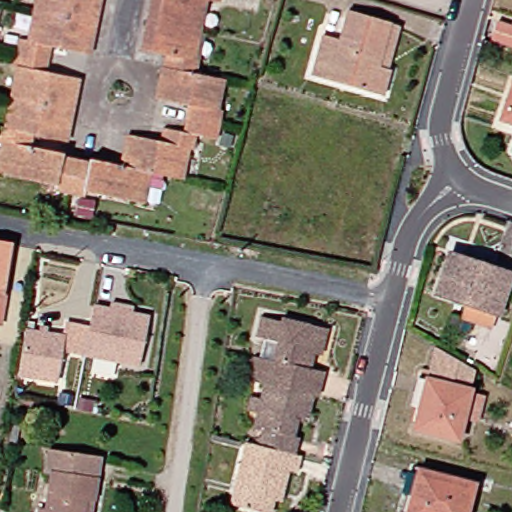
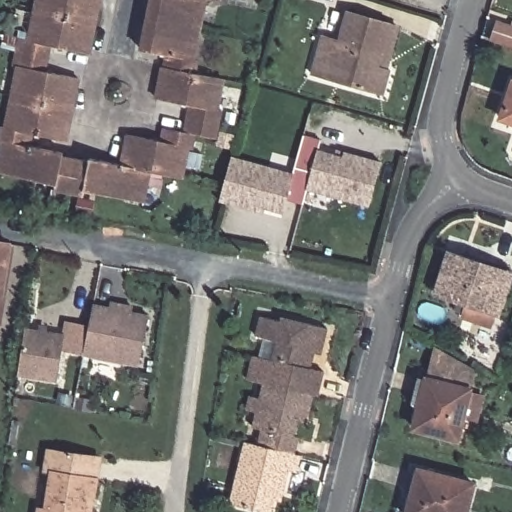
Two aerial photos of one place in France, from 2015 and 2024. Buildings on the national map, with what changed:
unchanged [(97,27),(90,57),(89,58),(52,50),(46,75),(77,83),(71,114),(64,143),(34,138),(31,149),(61,156),(61,158),(87,165),(88,162),(120,168),(127,138),(148,143),(159,145),(162,133),(193,139),(191,151),(186,150),(179,181),(147,175),(140,204),(82,192),(80,197),(67,194),(53,192),(54,186),(0,175),(0,150),(2,143),(0,143),(0,129),(5,130),(12,101),(20,69),(12,68),(19,42),(29,44),(39,0),(102,0),(97,27)]
unchanged [(226,4),(213,2),(199,63),(205,65),(203,78),(228,83),(222,114),(227,115),(225,128),(192,120),(196,108),(162,100),(170,70),(172,57),(149,52),(156,23),(160,0),(227,0),(226,4)]
unchanged [(317,74),(328,35),(346,40),(354,10),(397,23),(407,26),(394,69),(398,70),(390,95),(353,85),(336,80),(317,74)]
unchanged [(498,88),(480,83),(482,73),(501,79),(498,88)]
unchanged [(512,95),(512,121),(503,118),(512,95)]
new [(293,172),(303,137),(320,140),(318,145),(379,162),(368,204),(307,188),(303,203),(287,198),(282,215),(222,199),(231,158),(293,172)]
unchanged [(3,298),(0,318),(0,244),(14,247),(6,298),(3,298)]
unchanged [(438,296),(452,258),(465,262),(466,257),(512,271),(512,280),(501,315),(438,296)]
unchanged [(40,284),(32,283),(34,273),(42,275),(40,284)]
unchanged [(137,361),(82,350),(91,307),(91,303),(107,306),(109,300),(131,304),(129,310),(146,313),(137,361)]
unchanged [(295,434),(301,435),(296,454),(258,446),(263,427),(255,425),(258,408),(251,406),(254,394),(262,395),(265,380),(250,376),(252,365),(254,355),(260,356),(265,335),(257,333),(261,314),(281,318),(282,314),(327,325),(322,344),(317,344),(312,366),(325,369),(317,394),(315,394),(309,413),(301,411),(295,434)]
unchanged [(16,372),(22,327),(37,329),(38,322),(45,323),(44,330),(62,333),(56,378),(16,372)]
unchanged [(483,423),(468,421),(463,442),(415,431),(420,408),(415,406),(424,375),(428,377),(437,343),(480,369),(474,392),(491,395),(483,423)]
unchanged [(86,407),(71,404),(73,394),(87,396),(86,407)]
unchanged [(237,486),(247,443),(258,446),(296,454),(301,456),(297,470),(290,469),(286,485),(282,498),(277,496),(273,512),(246,506),(233,502),(237,486)]
unchanged [(49,500),(55,463),(100,470),(97,491),(93,512),(39,512),(42,499),(49,500)]
unchanged [(407,512),(417,469),(428,472),(479,485),(472,512),(407,512)]

